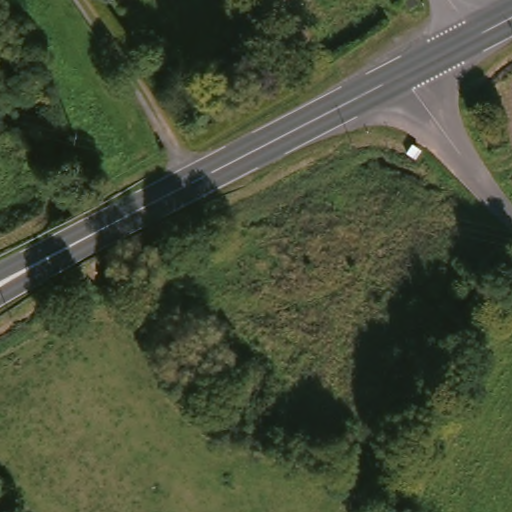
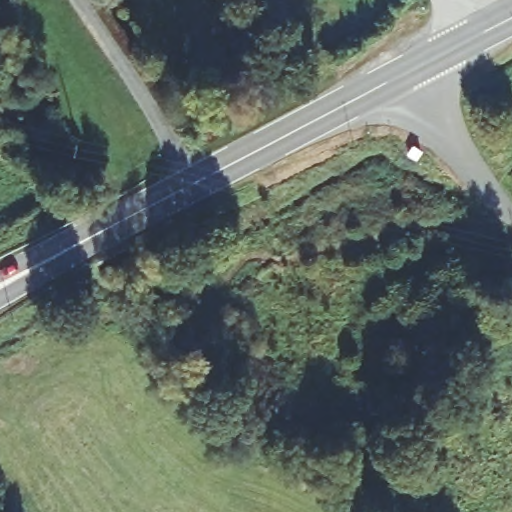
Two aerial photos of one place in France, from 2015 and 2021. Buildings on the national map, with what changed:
unchanged [(406,0),(407,0),(415,0),(417,5),(410,9),(406,0)]
unchanged [(416,158),(410,153),(415,146),(422,150),(416,158)]

